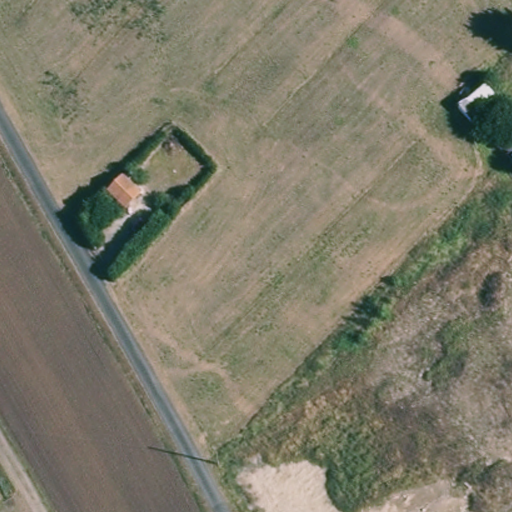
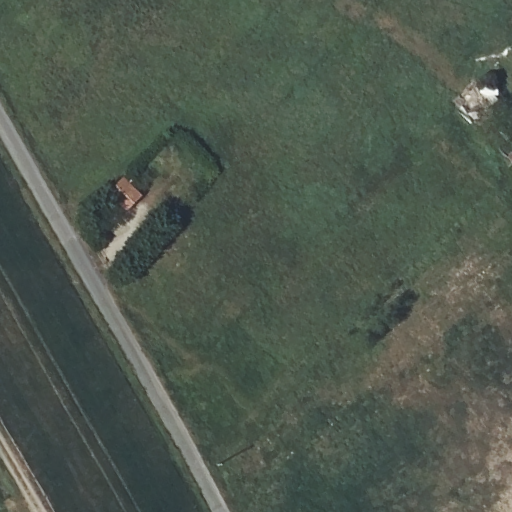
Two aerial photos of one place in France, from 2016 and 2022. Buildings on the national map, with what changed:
unchanged [(135,191),(119,205),(106,195),(122,179),(135,191)]

